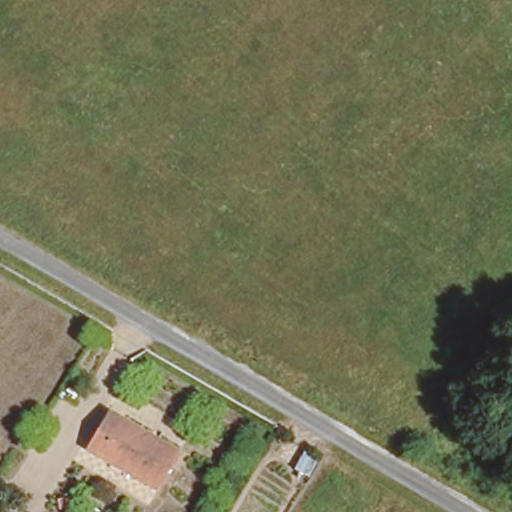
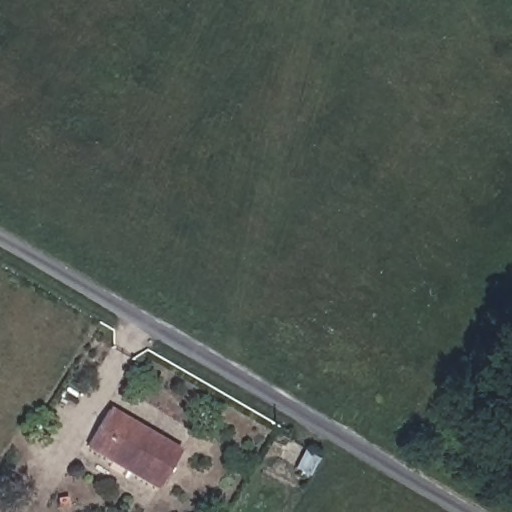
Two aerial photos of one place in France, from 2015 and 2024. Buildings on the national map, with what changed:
unchanged [(176,451),(155,486),(89,445),(110,410),(176,451)]

